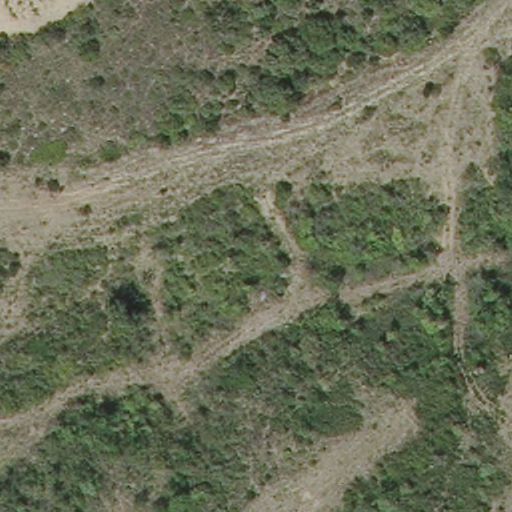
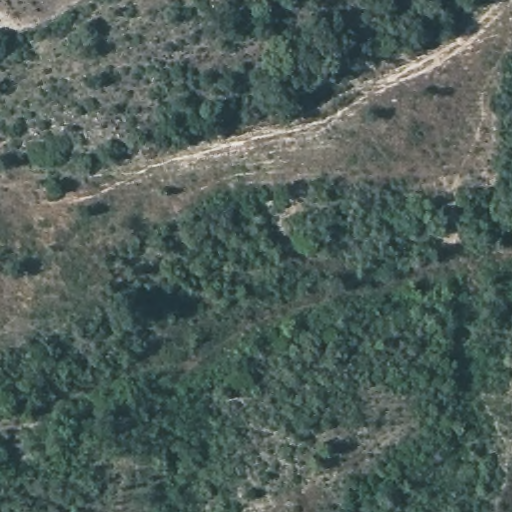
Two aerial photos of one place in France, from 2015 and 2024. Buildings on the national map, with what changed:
[]

